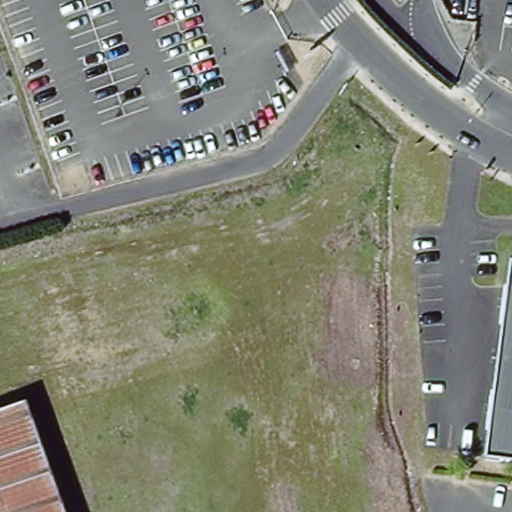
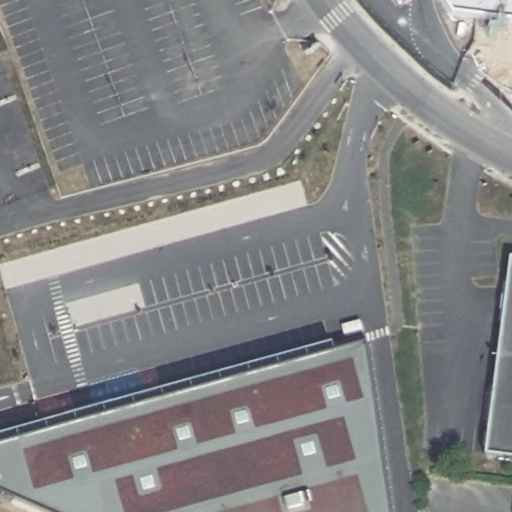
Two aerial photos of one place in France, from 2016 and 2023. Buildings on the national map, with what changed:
new [(445,0),(512,0),(512,28),(456,22),(445,0)]
unchanged [(512,267),(512,456),(489,453),(512,267)]
new [(0,491),(0,436),(333,345),(334,351),(366,342),(390,512),(48,512),(0,491)]
demolished [(23,401),(63,512),(0,512),(0,409),(23,401)]

